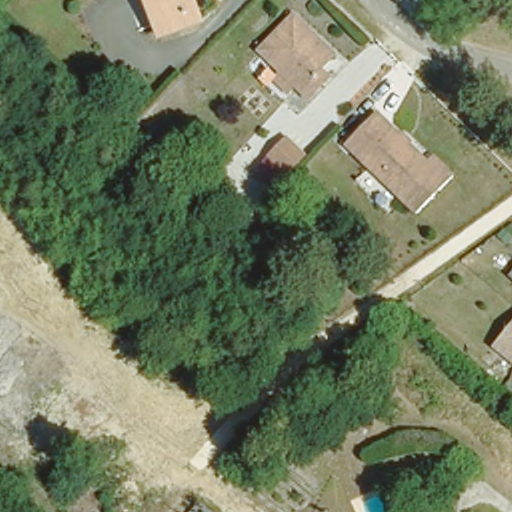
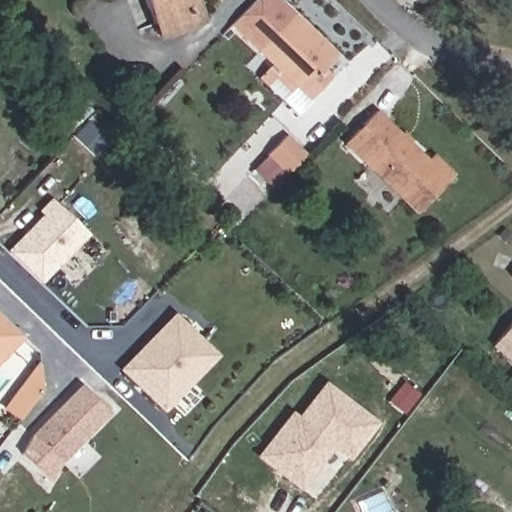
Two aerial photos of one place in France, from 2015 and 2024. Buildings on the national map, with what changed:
unchanged [(160,29),(155,16),(149,0),(195,0),(195,2),(200,15),(160,29)]
new [(332,57),(314,74),(323,83),(306,100),(229,23),(252,0),(273,0),(291,18),(332,57)]
demolished [(247,55),(280,22),(321,61),(307,74),(303,79),(312,87),(295,104),(282,90),(262,71),(247,55)]
new [(293,86),(285,95),(266,75),(273,66),(293,86)]
unchanged [(371,109),(422,155),(428,149),(449,170),(414,206),(344,139),(371,109)]
unchanged [(306,157),(285,175),(264,156),(283,136),(306,157)]
new [(41,283),(5,252),(40,215),(36,211),(48,199),(87,235),(41,283)]
unchanged [(512,263),(512,281),(503,274),(512,263)]
new [(117,370),(171,312),(216,356),(161,413),(117,370)]
unchanged [(512,316),(512,370),(480,344),(507,312),(512,316)]
new [(0,361),(0,316),(23,337),(0,361)]
new [(41,390),(18,421),(1,408),(37,362),(41,390)]
new [(290,411),(296,415),(323,381),(377,422),(348,461),(330,449),(299,491),(254,457),(290,411)]
new [(60,465),(29,436),(78,384),(110,413),(60,465)]
new [(203,512),(202,512),(202,511),(203,512)]

